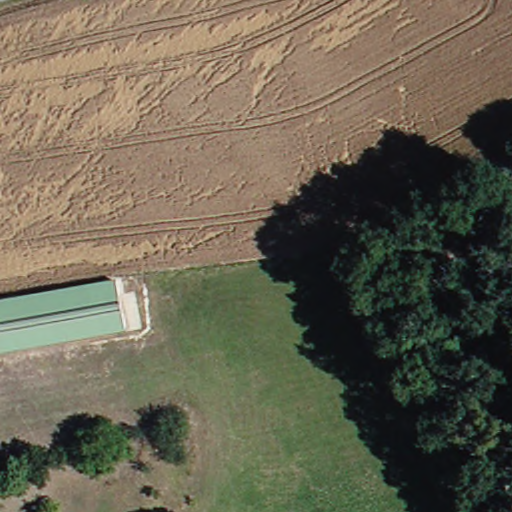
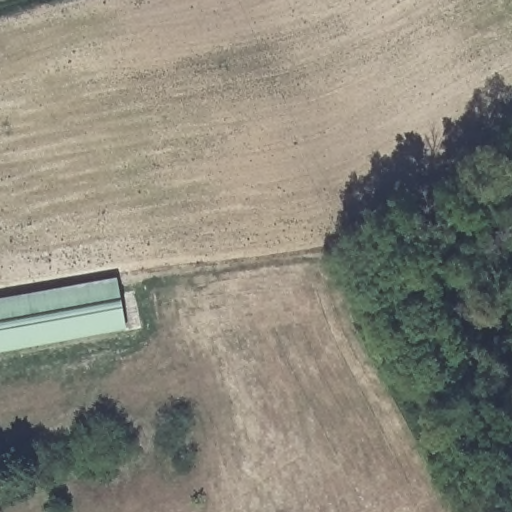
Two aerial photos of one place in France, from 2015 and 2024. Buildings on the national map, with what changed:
unchanged [(126,329),(0,353),(0,299),(117,277),(126,329)]

